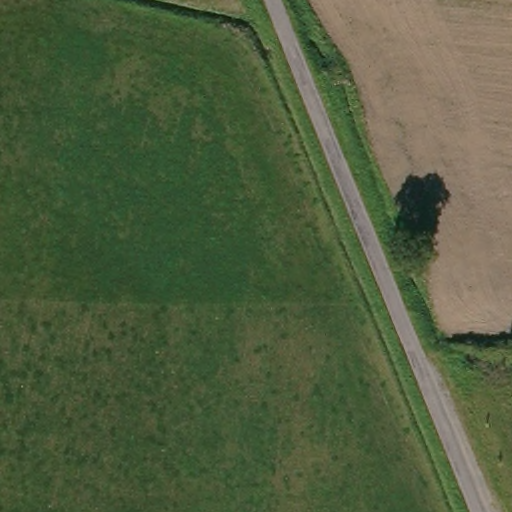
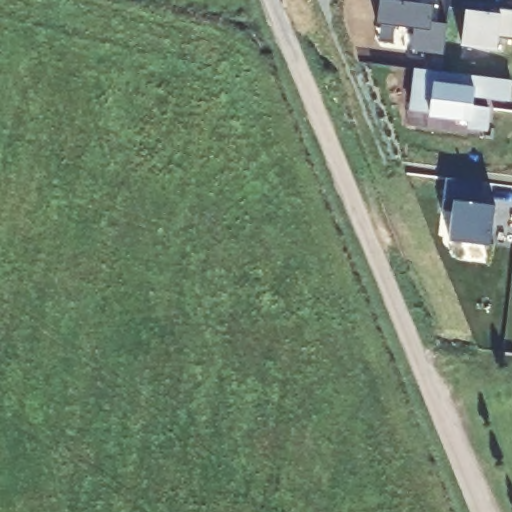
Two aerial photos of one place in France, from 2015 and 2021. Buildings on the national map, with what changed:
new [(399,0),(432,4),(431,20),(446,23),(442,53),(410,49),(412,27),(376,23),(378,0),(399,0)]
new [(464,9),(487,11),(488,6),(512,8),(512,39),(497,37),(496,48),(460,44),(464,9)]
new [(415,68),(509,79),(507,99),(472,95),(472,104),(487,106),(485,129),(467,127),(468,116),(409,109),(415,68)]
new [(444,177),(481,182),(478,203),(494,204),(489,245),(448,240),(452,210),(440,209),(444,177)]

